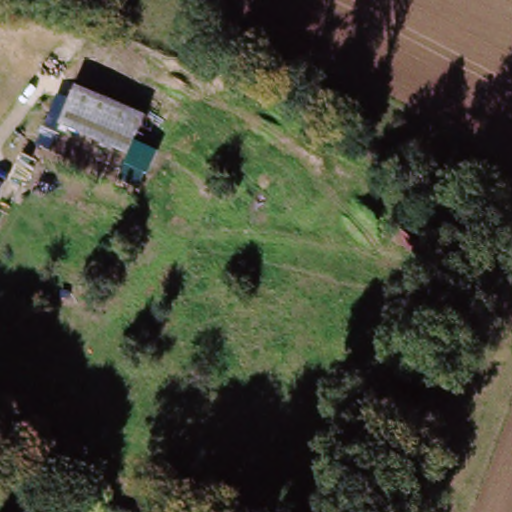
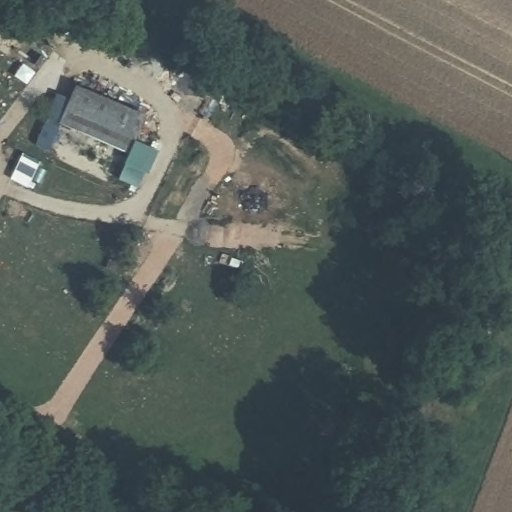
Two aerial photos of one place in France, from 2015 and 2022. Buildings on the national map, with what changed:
unchanged [(32,140),(57,91),(68,94),(74,84),(154,120),(126,180),(113,174),(123,151),(60,125),(48,148),(32,140)]
unchanged [(454,244),(434,270),(393,240),(409,217),(454,244)]

